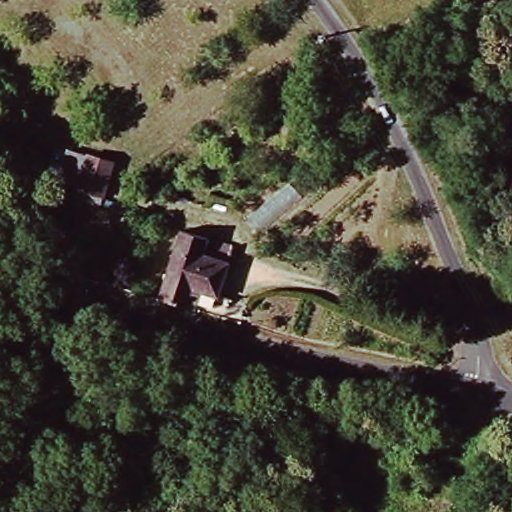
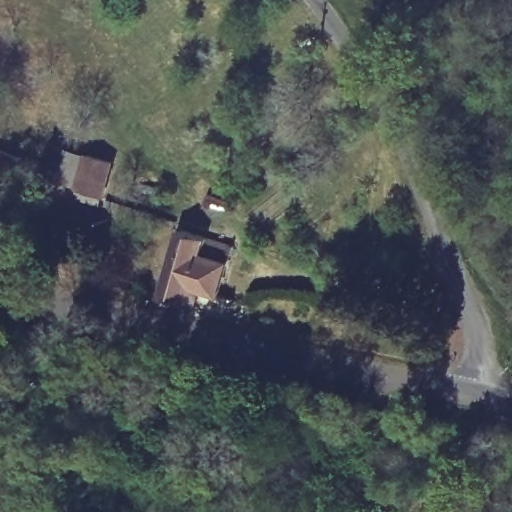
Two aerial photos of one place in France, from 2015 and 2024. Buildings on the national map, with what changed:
unchanged [(67,150),(86,155),(115,165),(105,204),(73,192),(57,185),(67,150)]
unchanged [(188,307),(159,299),(185,232),(212,240),(237,249),(232,264),(220,295),(204,290),(198,309),(188,307)]
unchanged [(58,289),(62,273),(80,277),(76,293),(58,289)]

